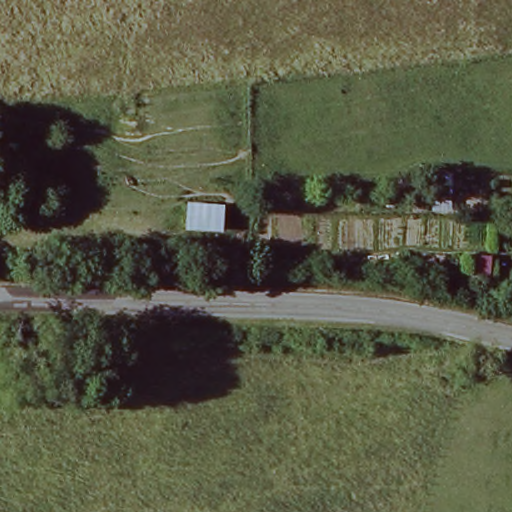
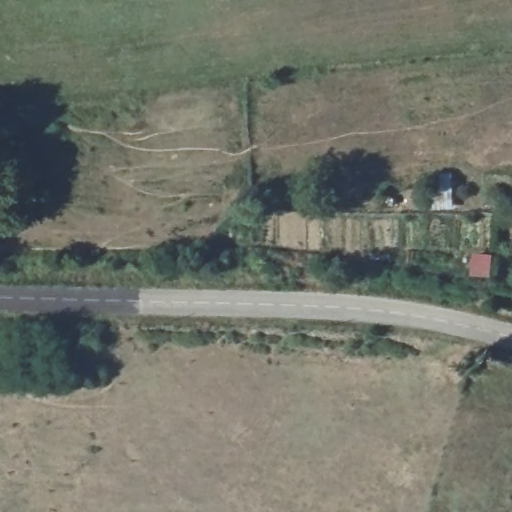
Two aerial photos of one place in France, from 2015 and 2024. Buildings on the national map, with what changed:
demolished [(184,202),(223,202),(222,229),(187,229),(184,202)]

